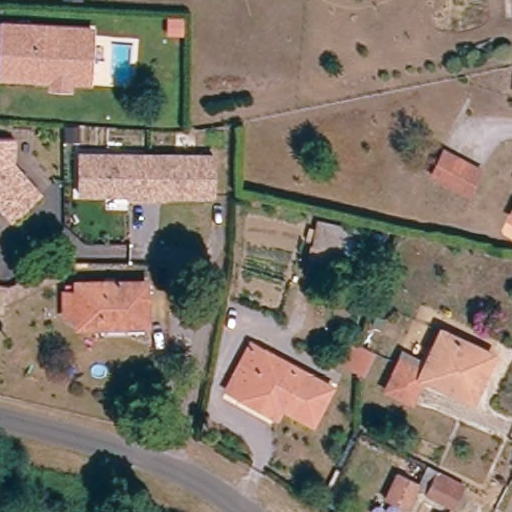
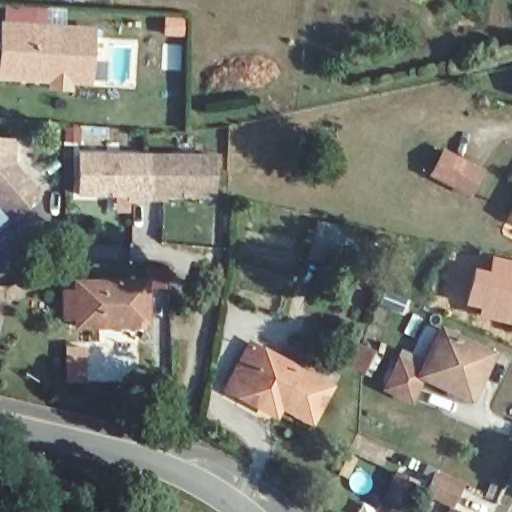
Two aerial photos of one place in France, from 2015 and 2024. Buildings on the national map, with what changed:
unchanged [(49,97),(49,91),(23,89),(0,87),(0,35),(89,41),(85,92),(65,91),(65,99),(49,97)]
unchanged [(512,80),(512,92),(508,91),(512,80)]
unchanged [(21,145),(20,169),(47,200),(19,226),(0,204),(0,143),(21,145)]
unchanged [(488,172),(476,196),(438,176),(450,152),(488,172)]
unchanged [(221,162),(220,202),(170,201),(170,205),(136,205),(136,201),(86,200),(86,160),(221,162)]
unchanged [(379,238),(367,282),(310,266),(325,222),(379,238)]
new [(486,270),(489,255),(512,261),(512,326),(476,317),(477,309),(462,306),(471,267),(486,270)]
unchanged [(78,327),(78,318),(66,318),(66,293),(78,293),(77,286),(147,285),(147,327),(78,327)]
new [(384,287),(409,297),(402,315),(377,304),(384,287)]
unchanged [(437,337),(485,359),(473,385),(476,387),(467,406),(419,383),(406,408),(381,396),(395,366),(418,377),(437,337)]
unchanged [(340,362),(350,343),(362,349),(372,354),(362,372),(340,362)]
unchanged [(248,345),(327,389),(307,424),(273,404),(267,415),(236,397),(241,388),(227,381),(248,345)]
unchanged [(454,506),(417,488),(428,466),(436,470),(465,483),(454,506)]
unchanged [(407,507),(387,498),(398,476),(418,485),(407,507)]

